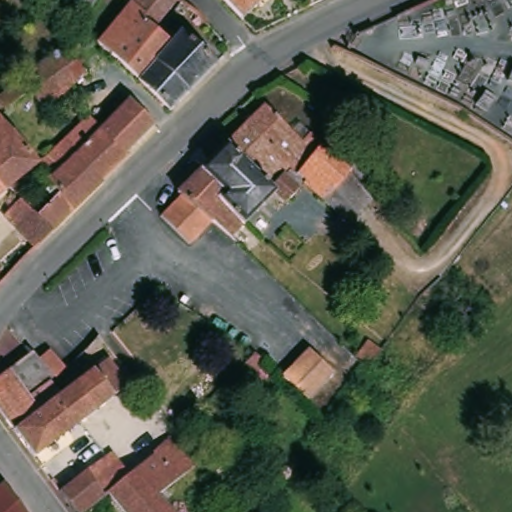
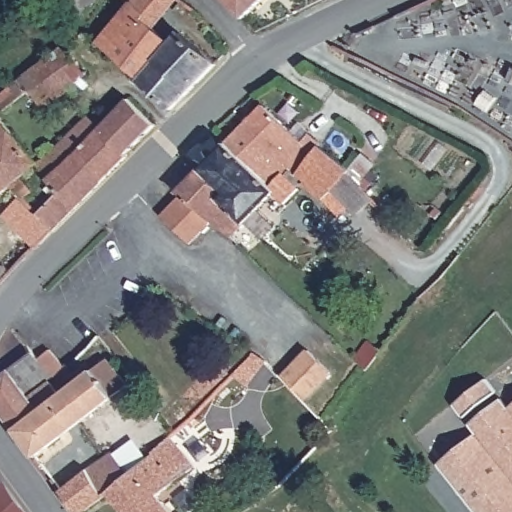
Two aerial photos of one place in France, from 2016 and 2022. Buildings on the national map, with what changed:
unchanged [(116,0),(168,0),(169,1),(144,28),(164,42),(174,32),(208,65),(191,83),(182,92),(174,99),(163,110),(162,110),(121,66),(109,54),(102,47),(94,39),(91,36),(103,22),(119,3),(116,0)]
unchanged [(240,18),(222,0),(259,0),(240,18)]
unchanged [(91,36),(94,39),(102,47),(97,60),(97,63),(37,107),(25,92),(0,110),(0,109),(0,90),(7,85),(8,84),(84,28),(91,36)]
unchanged [(31,214),(53,188),(45,179),(30,160),(62,135),(63,137),(82,121),(91,129),(109,109),(120,96),(149,124),(120,152),(120,155),(103,174),(97,179),(77,199),(70,207),(56,224),(49,232),(39,243),(33,249),(16,230),(31,214)]
unchanged [(239,133),(269,107),(300,141),(312,134),(316,137),(325,145),(323,147),(299,172),(296,174),(290,170),(285,175),(283,172),(280,174),(269,186),(229,142),(239,133)]
unchanged [(4,186),(1,183),(0,184),(0,122),(30,160),(11,175),(20,185),(12,194),(4,186)]
unchanged [(269,186),(280,174),(283,172),(285,175),(299,189),(284,205),(272,193),(241,223),(239,222),(238,221),(232,215),(227,210),(213,195),(212,193),(214,189),(217,185),(202,171),(200,169),(229,142),(269,186)]
unchanged [(337,191),(324,200),(305,183),(306,178),(299,172),(323,147),(349,169),(354,175),(337,191)]
new [(363,154),(375,167),(359,186),(371,200),(353,215),(349,211),(339,218),(324,200),(337,191),(354,175),(349,169),(363,154)]
unchanged [(182,193),(179,189),(200,169),(202,171),(217,185),(214,189),(212,193),(213,195),(227,210),(232,215),(238,221),(239,222),(241,223),(232,231),(239,238),(234,243),(232,241),(226,236),(209,219),(208,221),(198,231),(188,242),(184,238),(162,218),(159,215),(182,193)]
unchanged [(106,350),(129,378),(113,391),(103,400),(89,412),(30,457),(17,439),(0,418),(0,372),(27,351),(33,358),(46,348),(62,366),(49,376),(60,388),(106,350)]
unchanged [(328,375),(304,396),(284,372),(307,351),(328,375)]
demolished [(376,376),(371,371),(384,355),(397,364),(383,382),(376,376)]
new [(474,434),(467,426),(501,398),(509,408),(512,406),(512,512),(473,512),(435,465),(474,434)]
unchanged [(107,492),(81,512),(71,512),(54,491),(87,466),(100,456),(112,448),(130,472),(141,462),(159,446),(169,437),(175,445),(191,433),(201,445),(192,453),(188,458),(194,467),(157,496),(169,512),(123,512),(121,509),(107,492)]
unchanged [(10,499),(20,512),(0,512),(0,484),(10,499)]

